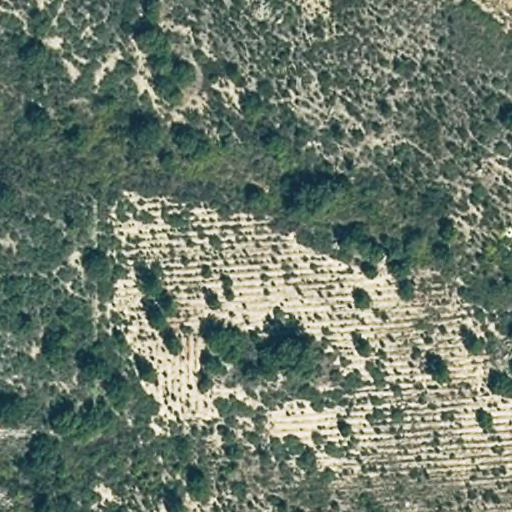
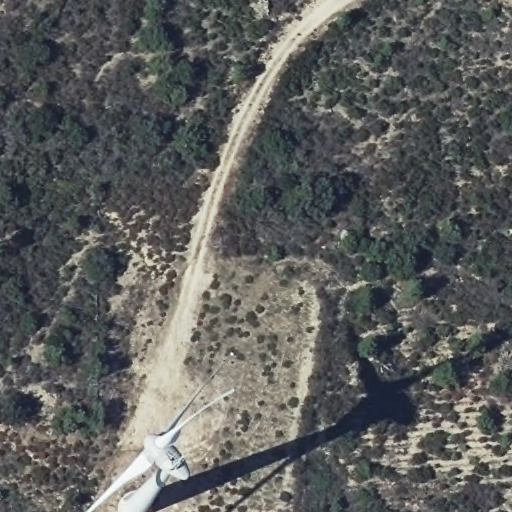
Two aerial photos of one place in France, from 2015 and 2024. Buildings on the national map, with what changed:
[]

